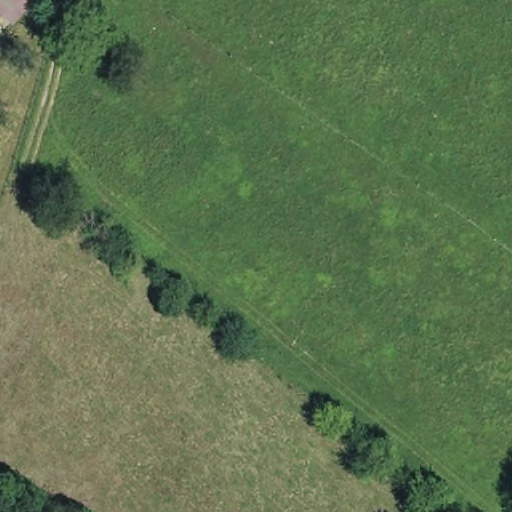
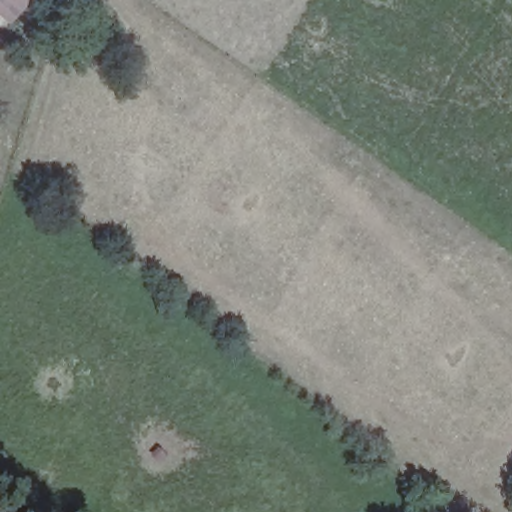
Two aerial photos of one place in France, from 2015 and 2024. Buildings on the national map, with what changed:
unchanged [(0,9),(0,0),(39,0),(17,24),(0,9)]

